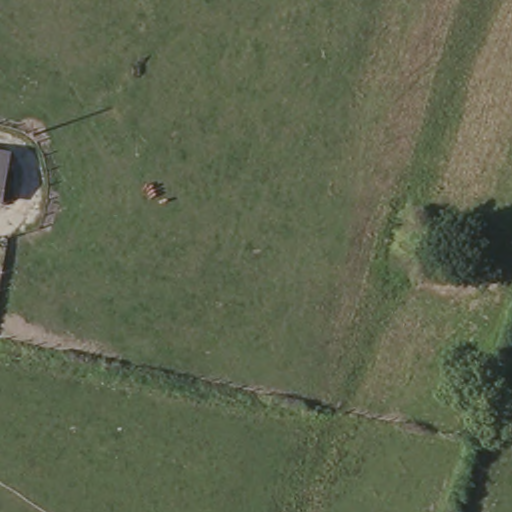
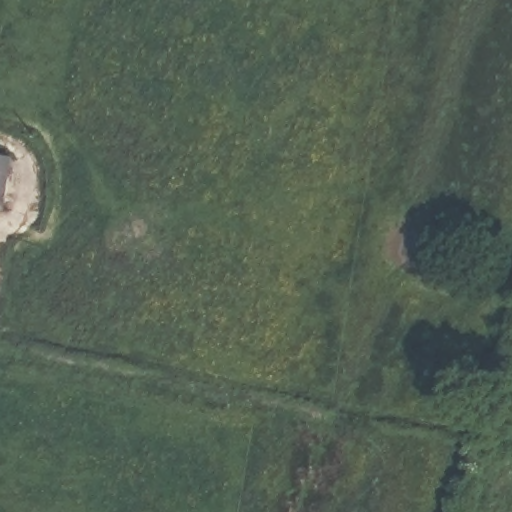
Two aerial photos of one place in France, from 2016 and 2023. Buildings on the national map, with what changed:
unchanged [(12,155),(12,170),(7,205),(0,204),(0,153),(12,155)]

